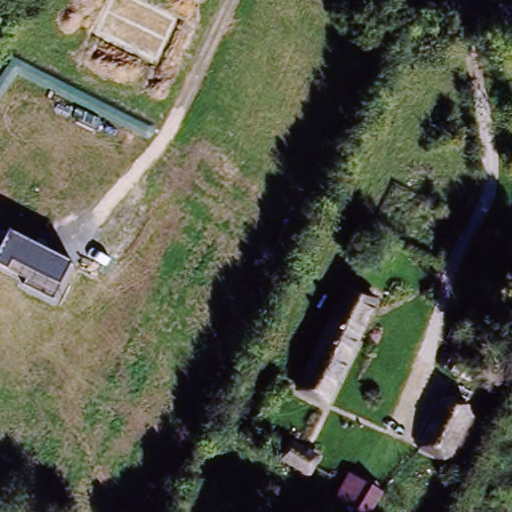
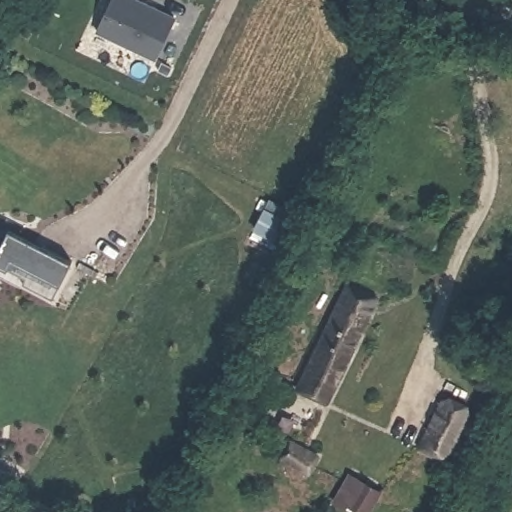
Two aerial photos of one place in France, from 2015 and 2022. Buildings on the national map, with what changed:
new [(157,60),(96,31),(112,0),(140,0),(177,18),(157,60)]
unchanged [(10,229),(75,262),(54,298),(23,284),(27,277),(0,267),(0,249),(10,229)]
unchanged [(285,387),(327,302),(335,285),(362,298),(354,315),(312,400),(285,387)]
unchanged [(462,408),(440,451),(418,439),(440,397),(462,408)]
demolished [(349,458),(325,447),(334,431),(357,441),(349,458)]
unchanged [(368,508),(345,496),(353,480),(375,491),(368,508)]

